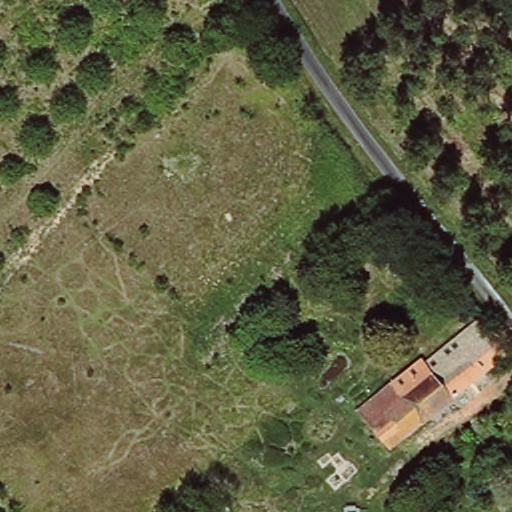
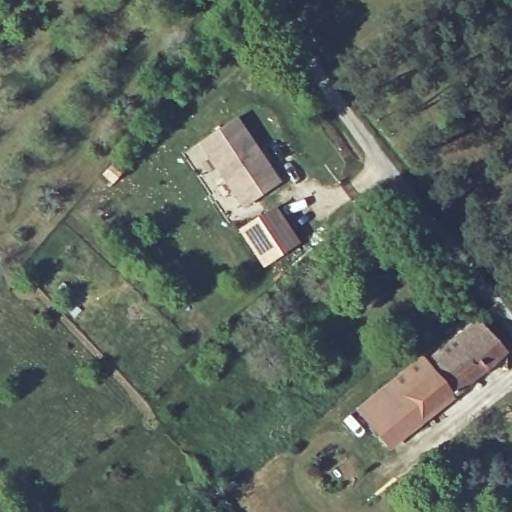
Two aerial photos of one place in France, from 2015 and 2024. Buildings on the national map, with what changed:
new [(239,118),(284,181),(250,205),(205,142),(239,118)]
new [(237,230),(273,206),(298,243),(262,268),(237,230)]
unchanged [(505,354),(386,458),(377,451),(387,441),(361,412),(423,360),(427,362),(481,318),(505,354)]

